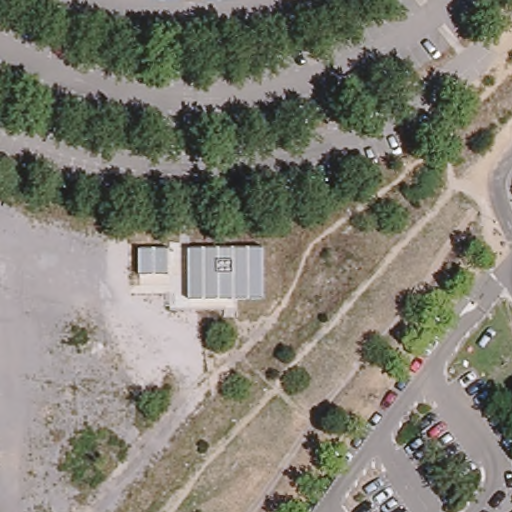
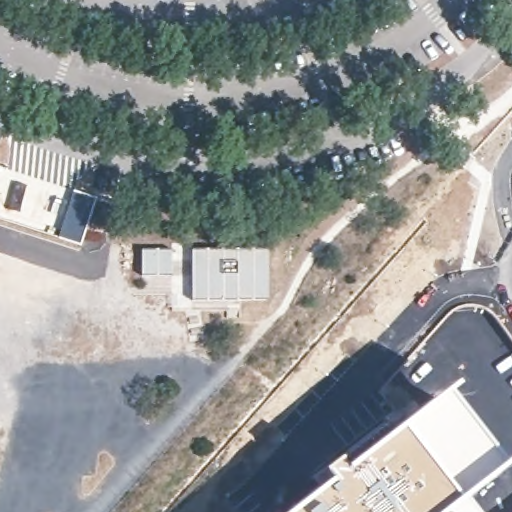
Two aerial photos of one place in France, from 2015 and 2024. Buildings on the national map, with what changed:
unchanged [(268,298),(192,300),(192,250),(268,249),(268,298)]
new [(143,252),(173,252),(174,278),(143,278),(143,252)]
new [(467,497),(447,512),(286,512),(326,481),(321,472),(337,460),(343,467),(446,389),(505,467),(467,497)]
new [(467,497),(480,512),(447,512),(467,497)]

